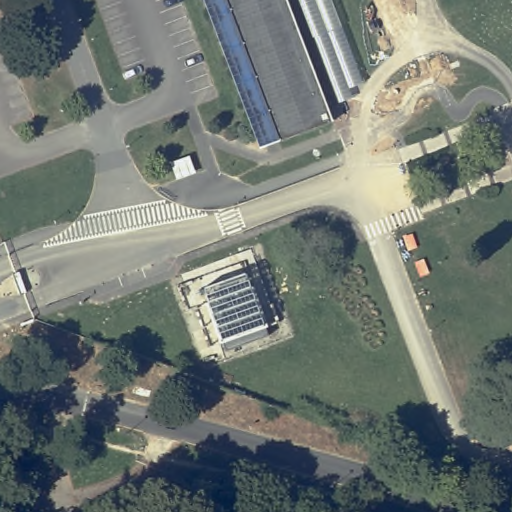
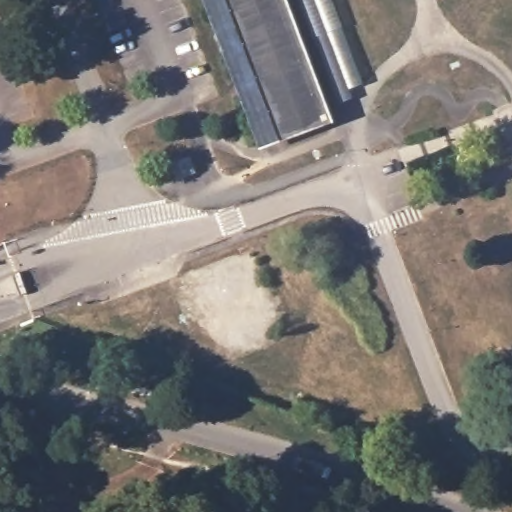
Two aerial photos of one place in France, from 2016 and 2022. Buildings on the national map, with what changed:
unchanged [(266,150),(208,0),(229,0),(285,142),(266,150)]
unchanged [(340,121),(285,142),(229,0),(293,0),(340,121)]
new [(245,272),(250,286),(252,285),(266,326),(264,327),(267,335),(224,350),(221,342),(219,342),(205,302),(206,301),(201,287),(245,272)]

